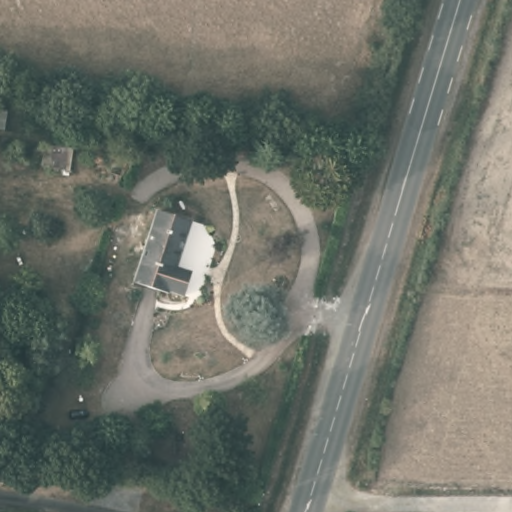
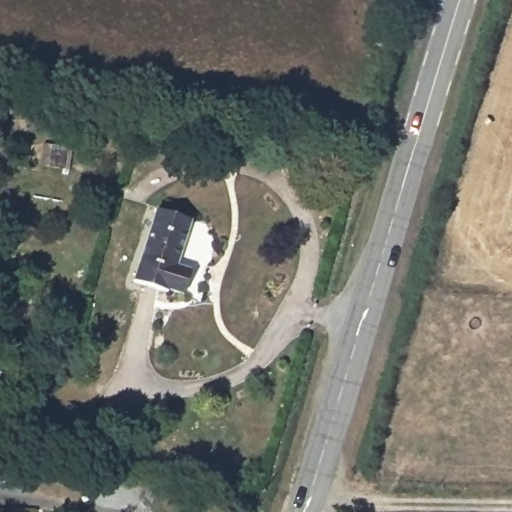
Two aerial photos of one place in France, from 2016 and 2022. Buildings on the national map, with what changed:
unchanged [(168,288),(164,291),(134,281),(156,209),(189,219),(176,265),(190,271),(182,293),(168,288)]

